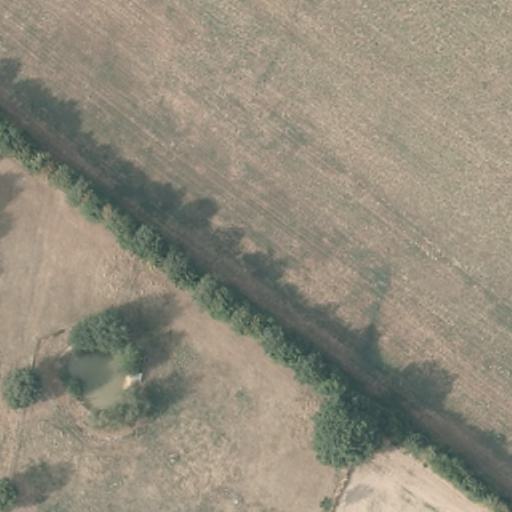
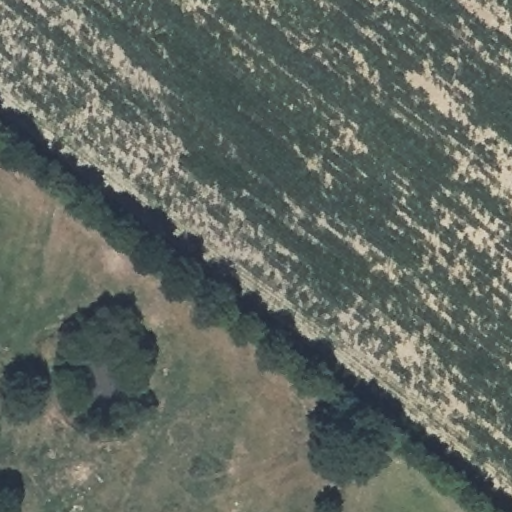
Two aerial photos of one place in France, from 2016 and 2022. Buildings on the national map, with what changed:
[]

